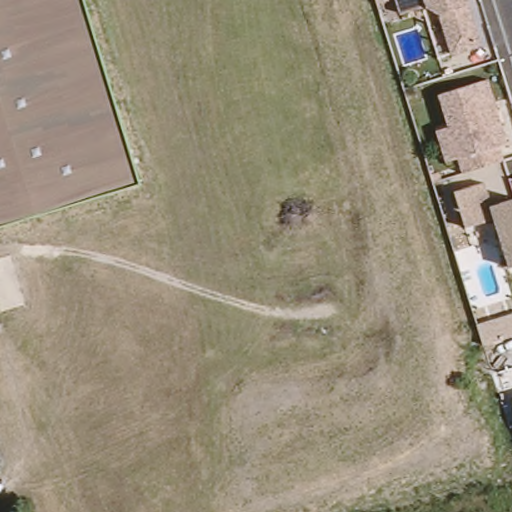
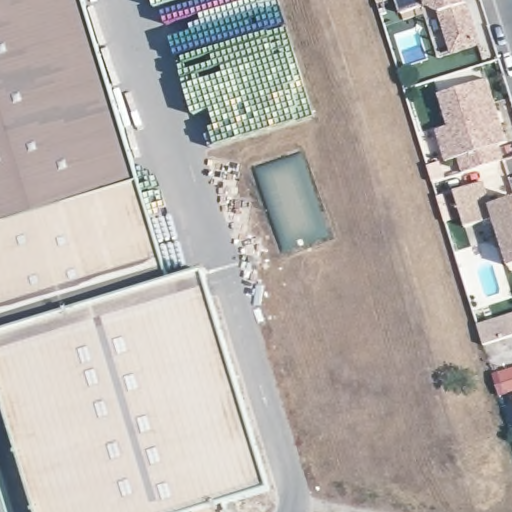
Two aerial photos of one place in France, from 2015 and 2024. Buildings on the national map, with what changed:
unchanged [(0,227),(0,0),(84,0),(140,183),(0,227)]
unchanged [(435,62),(418,11),(397,18),(391,0),(464,0),(480,48),(435,62)]
unchanged [(485,80),(503,141),(494,145),(497,161),(460,171),(456,160),(443,163),(434,132),(444,128),(433,94),(485,80)]
new [(172,284),(0,336),(0,227),(140,183),(172,284)]
unchanged [(487,207),(512,199),(512,266),(508,267),(492,219),(462,227),(452,194),(481,185),(487,207)]
new [(270,489),(194,512),(38,512),(0,388),(0,336),(172,284),(204,274),(270,489)]
new [(512,336),(483,345),(477,325),(512,315),(512,336)]
new [(10,512),(0,512),(0,478),(10,512)]

